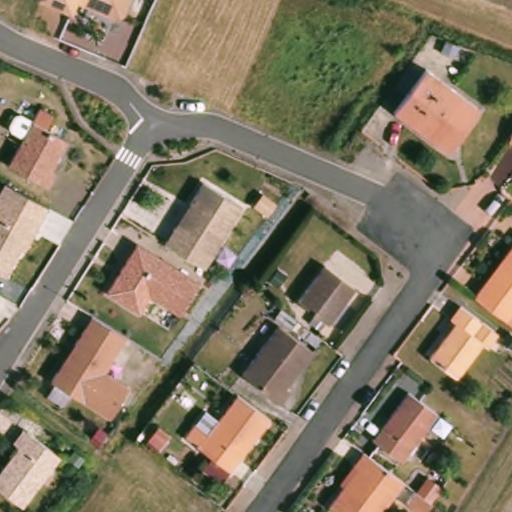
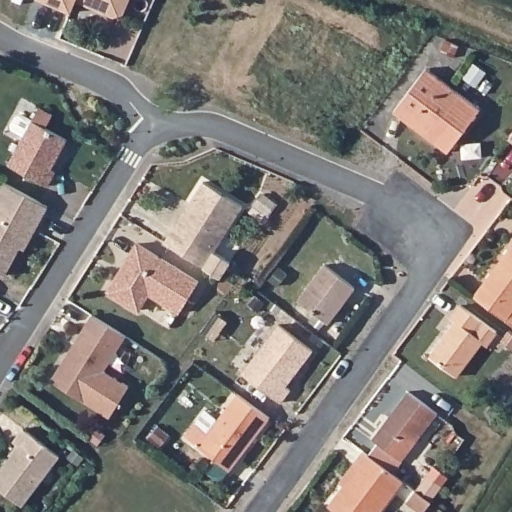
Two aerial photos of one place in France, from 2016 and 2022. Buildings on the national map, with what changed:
unchanged [(124,14),(111,17),(75,1),(70,13),(38,0),(130,0),(124,14)]
unchanged [(446,157),(394,117),(426,73),(479,115),(446,157)]
unchanged [(34,119),(41,106),(54,113),(47,126),(68,139),(52,169),(56,171),(49,185),(9,162),(34,119)]
unchanged [(174,221),(189,200),(202,179),(241,205),(203,261),(163,237),(164,237),(174,221)]
unchanged [(20,245),(5,273),(0,270),(0,190),(6,180),(49,205),(35,229),(25,247),(20,245)]
unchanged [(136,240),(198,279),(178,310),(148,291),(137,307),(106,287),(136,240)]
unchanged [(512,330),(473,297),(512,246),(512,330)]
unchanged [(330,327),(299,303),(324,269),(356,292),(330,327)]
unchanged [(102,367),(127,382),(107,413),(49,376),(67,347),(73,338),(91,311),(125,331),(102,367)]
unchanged [(488,352),(480,347),(453,381),(430,363),(454,330),(448,325),(458,311),(498,341),(488,352)]
unchanged [(246,378),(283,331),(313,354),(286,388),(293,394),(283,407),(246,378)]
unchanged [(401,466),(372,443),(408,395),(437,417),(401,466)]
unchanged [(271,423),(231,477),(185,441),(207,413),(223,426),(243,402),(271,423)]
unchanged [(21,440),(16,436),(26,422),(43,436),(62,450),(24,500),(0,481),(0,468),(21,440)]
unchanged [(384,512),(330,512),(328,511),(357,472),(353,468),(362,456),(403,486),(384,512)]
unchanged [(418,512),(405,502),(414,488),(431,502),(424,512),(418,512)]

